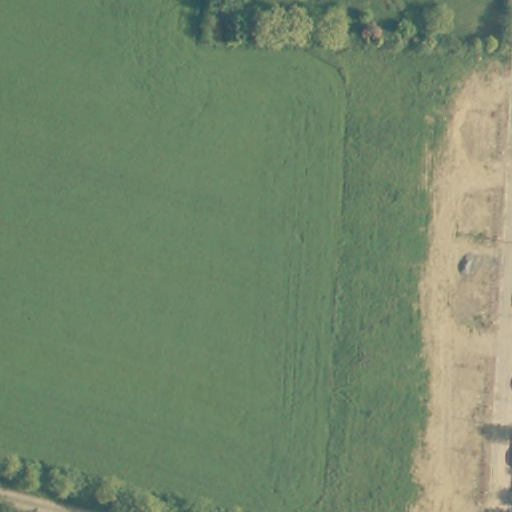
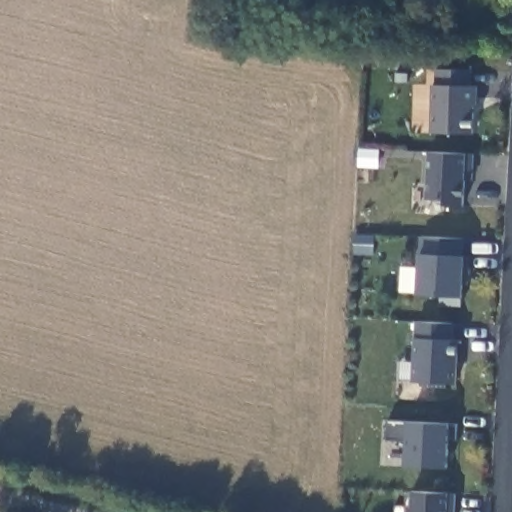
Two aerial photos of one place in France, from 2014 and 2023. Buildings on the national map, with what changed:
unchanged [(432,133),(432,85),(437,85),(436,69),(473,70),(474,86),(477,85),(478,105),(474,105),(474,132),(432,133)]
new [(474,180),(465,179),(464,206),(445,205),(446,200),(426,199),(428,153),(467,154),(475,154),(474,180)]
new [(438,304),(443,295),(417,295),(420,254),(420,253),(421,236),(466,238),(467,256),(471,256),(470,285),(465,283),(465,297),(461,306),(438,304)]
new [(411,382),(415,337),(416,321),(455,323),(457,339),(459,339),(457,383),(411,382)]
new [(407,421),(448,424),(457,424),(457,440),(448,439),(447,468),(404,466),(406,440),(387,440),(387,420),(407,421)]
new [(406,512),(407,505),(410,506),(411,490),(456,493),(455,512),(406,512)]

